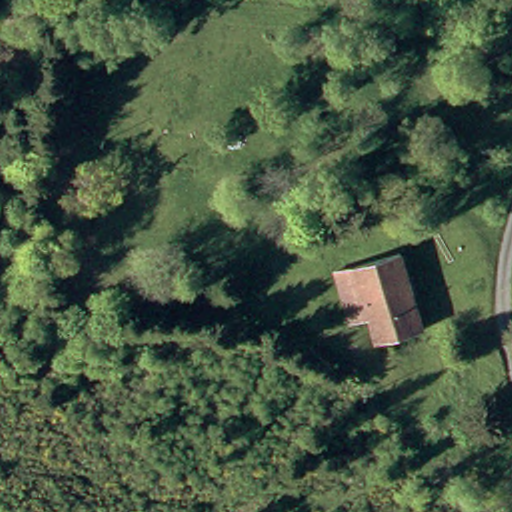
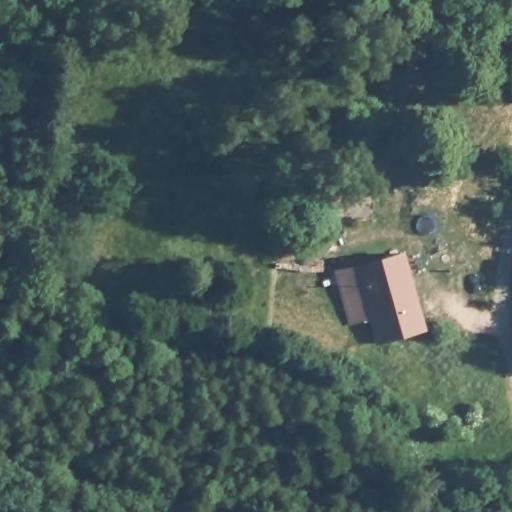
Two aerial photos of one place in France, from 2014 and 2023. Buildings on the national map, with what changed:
unchanged [(337,276),(404,255),(429,330),(385,344),(379,323),(355,331),(337,276)]

